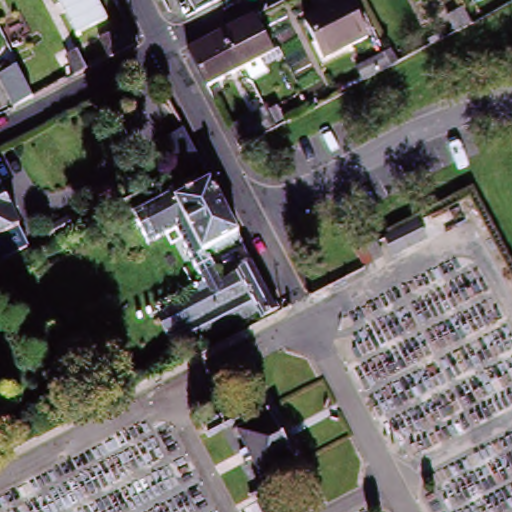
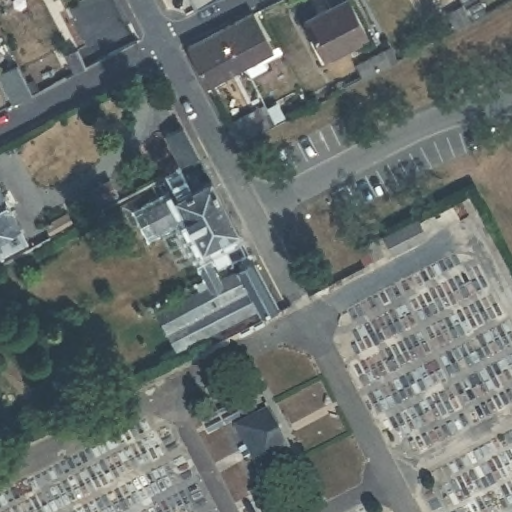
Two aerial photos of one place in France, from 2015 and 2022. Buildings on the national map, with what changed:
unchanged [(191,0),(214,0),(196,9),(191,0)]
unchanged [(351,0),(369,34),(331,54),(312,20),(349,0),(351,0)]
unchanged [(448,13),(465,4),(474,20),(456,29),(448,13)]
unchanged [(254,13),(273,48),(239,67),(237,65),(220,32),(220,31),(254,13)]
unchanged [(99,35),(130,19),(140,39),(123,47),(116,51),(110,54),(99,35)]
unchanged [(220,32),(237,65),(239,67),(208,84),(188,47),(220,31),(220,32)]
unchanged [(359,64),(391,46),(399,59),(389,64),(365,76),(359,64)]
unchanged [(66,54),(75,49),(85,66),(76,71),(66,54)]
unchanged [(34,94),(16,103),(0,74),(0,73),(18,64),(34,94)]
unchanged [(250,112),(264,106),(264,105),(266,111),(273,124),(268,126),(266,127),(263,129),(261,130),(252,135),(238,142),(229,124),(250,112)]
unchanged [(201,159),(196,161),(184,167),(168,136),(185,127),(201,159)]
unchanged [(200,291),(196,283),(205,277),(178,227),(176,229),(150,241),(135,215),(136,205),(136,204),(138,202),(140,201),(142,201),(151,205),(178,190),(176,185),(182,181),(197,174),(201,182),(211,177),(239,231),(243,238),(221,249),(211,245),(207,246),(223,278),(200,291)]
unchanged [(111,181),(116,192),(99,201),(93,190),(111,181)]
unchanged [(27,243),(0,256),(0,188),(27,243)]
unchanged [(53,222),(68,215),(74,225),(59,234),(53,222)]
unchanged [(350,249),(414,217),(427,239),(390,260),(385,257),(361,269),(350,249)]
unchanged [(176,303),(193,295),(200,291),(223,278),(240,269),(239,265),(239,261),(252,255),(255,261),(279,307),(277,308),(275,309),(261,316),(256,309),(212,331),(195,340),(176,303)]
unchanged [(255,422),(279,466),(260,476),(236,431),(255,422)]

